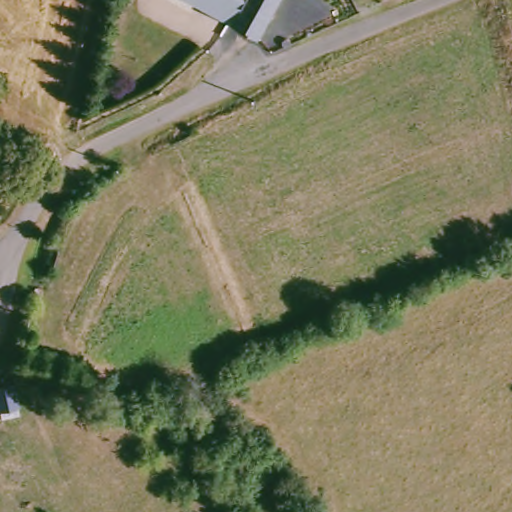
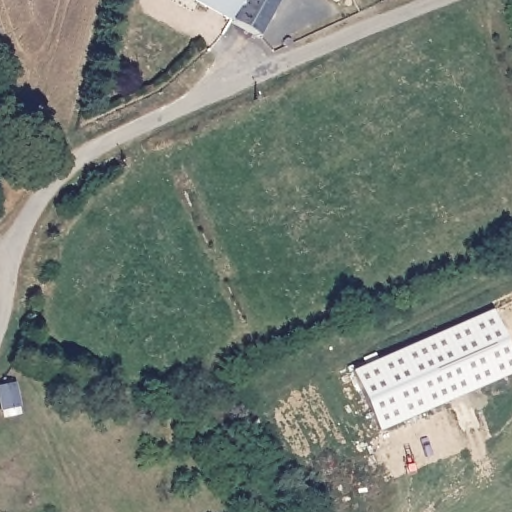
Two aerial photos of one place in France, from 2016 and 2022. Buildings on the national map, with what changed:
unchanged [(233,21),(196,0),(244,0),(233,21)]
unchanged [(260,37),(232,22),(233,21),(244,0),(280,0),(260,37)]
new [(512,341),(512,370),(388,432),(360,375),(494,306),(512,341)]

